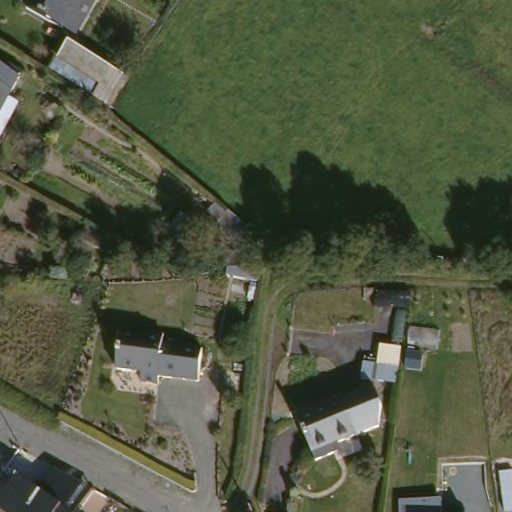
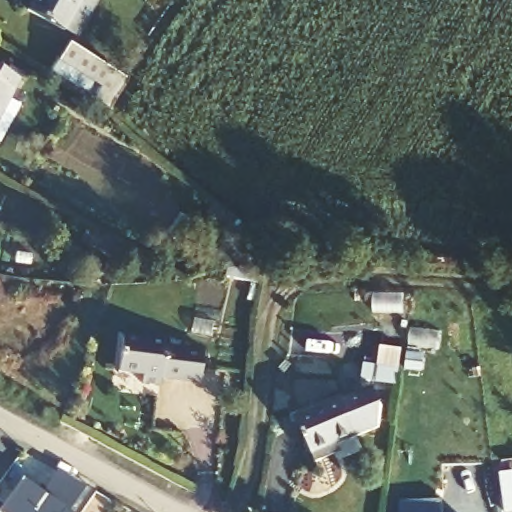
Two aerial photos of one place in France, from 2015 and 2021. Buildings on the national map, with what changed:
unchanged [(63,31),(29,12),(36,0),(95,0),(74,36),(63,31)]
unchanged [(25,77),(0,122),(0,63),(25,77)]
unchanged [(212,235),(218,225),(209,217),(217,205),(255,232),(240,256),(212,235)]
unchanged [(164,339),(164,345),(202,346),(202,379),(162,378),(162,387),(145,387),(146,378),(120,376),(122,341),(147,342),(147,338),(164,339)]
unchanged [(376,361),(410,367),(407,381),(373,376),(376,361)]
unchanged [(357,445),(332,453),(333,462),(316,468),(303,423),(347,409),(357,445)]
unchanged [(9,509),(33,477),(55,493),(70,472),(105,492),(90,512),(13,512),(9,509)]
unchanged [(400,503),(445,503),(445,512),(400,512),(400,503)]

